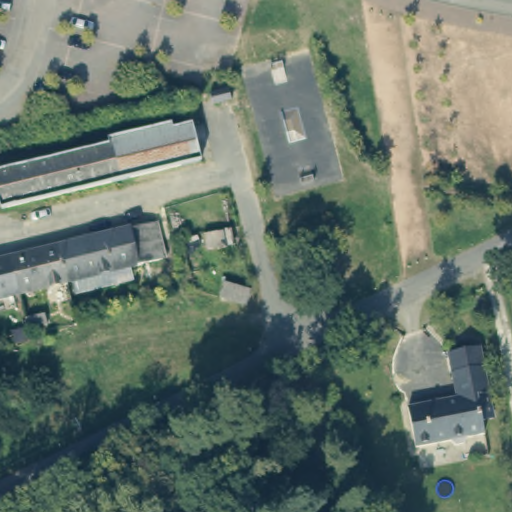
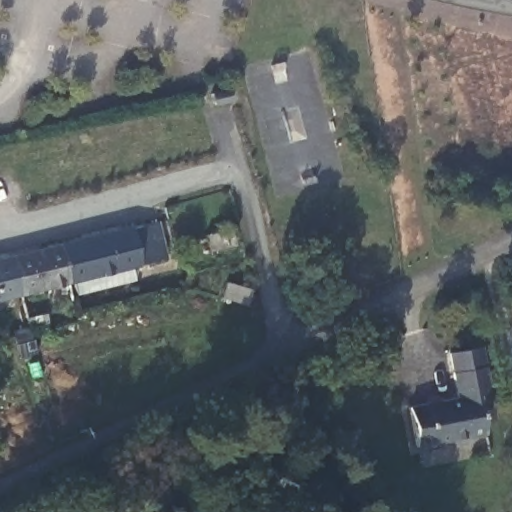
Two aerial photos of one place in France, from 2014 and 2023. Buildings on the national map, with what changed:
unchanged [(232,100),(214,105),(212,99),(212,95),(231,91),(232,95),(232,100)]
demolished [(5,210),(0,191),(0,176),(112,149),(111,143),(174,126),(175,131),(193,127),(202,162),(5,210)]
unchanged [(157,221),(166,257),(130,266),(133,280),(75,293),(71,282),(0,299),(0,259),(157,221)]
unchanged [(241,244),(215,246),(214,231),(241,227),(241,244)]
unchanged [(231,294),(256,301),(254,316),(245,313),(237,311),(227,309),(231,294)]
unchanged [(485,432),(467,435),(464,442),(455,444),(450,439),(416,446),(409,408),(458,397),(453,372),(450,352),(482,346),(486,365),(491,391),(478,395),(485,432)]

